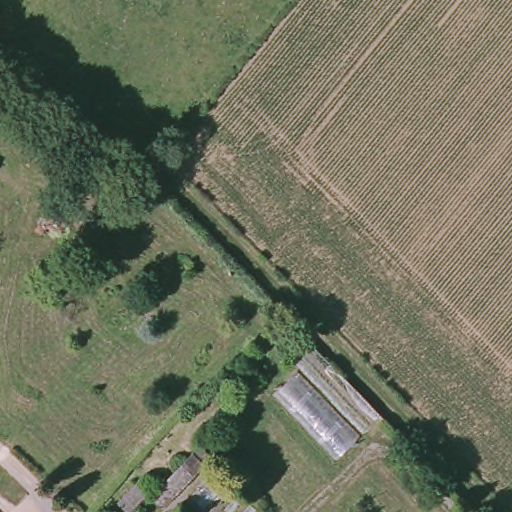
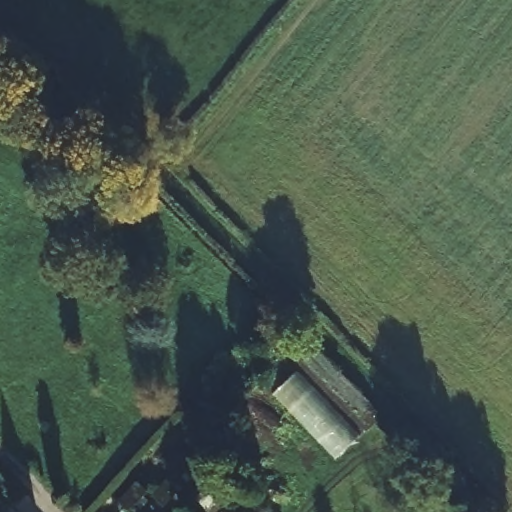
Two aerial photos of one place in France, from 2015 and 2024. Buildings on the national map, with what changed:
unchanged [(115,202),(78,241),(51,216),(88,177),(115,202)]
unchanged [(224,443),(177,496),(162,483),(210,430),(224,443)]
unchanged [(160,479),(144,497),(128,483),(145,465),(160,479)]
unchanged [(210,512),(202,512),(183,495),(208,467),(231,488),(210,512)]

